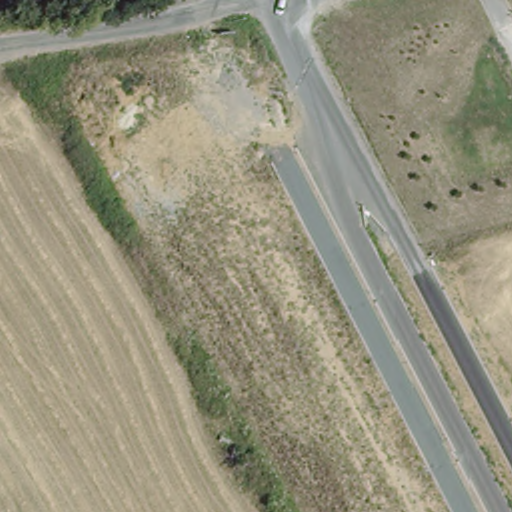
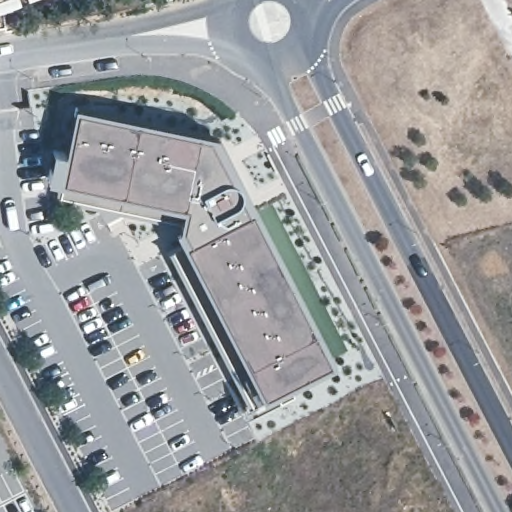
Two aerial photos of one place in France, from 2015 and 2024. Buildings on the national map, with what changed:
new [(13,0),(0,5),(0,0),(13,0)]
new [(290,386),(294,395),(256,413),(172,251),(183,245),(175,227),(60,199),(64,182),(47,180),(53,150),(65,152),(75,105),(217,133),(336,359),(290,386)]

